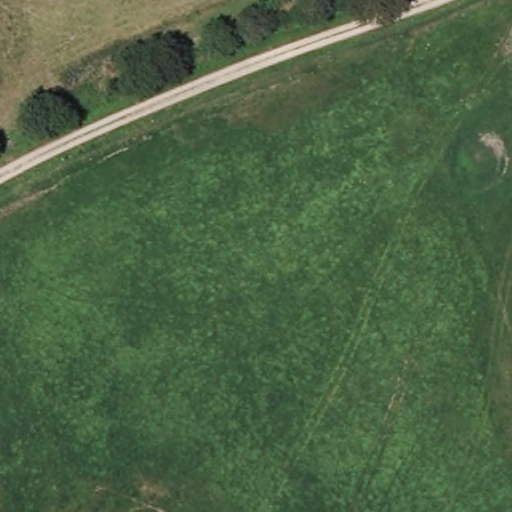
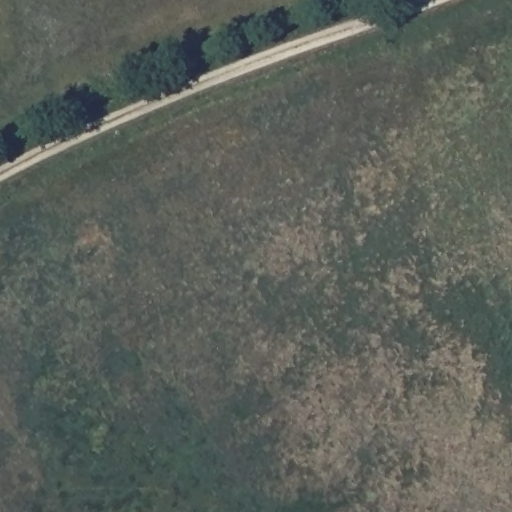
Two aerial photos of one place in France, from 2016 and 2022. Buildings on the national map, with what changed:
[]

